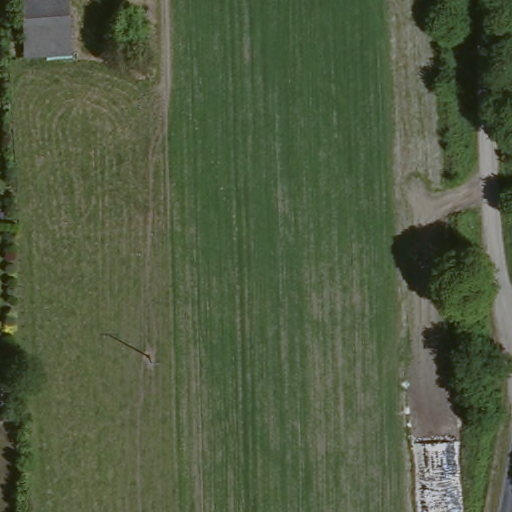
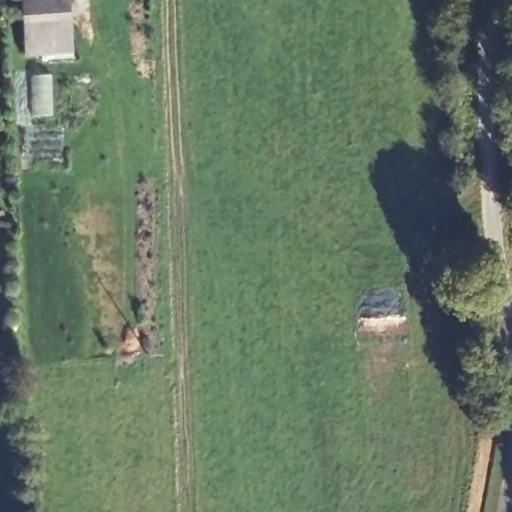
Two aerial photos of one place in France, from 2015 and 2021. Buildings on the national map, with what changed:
unchanged [(15,0),(61,0),(65,60),(18,63),(15,0)]

